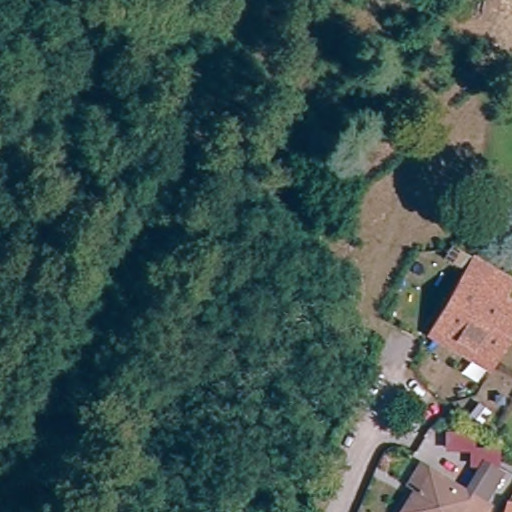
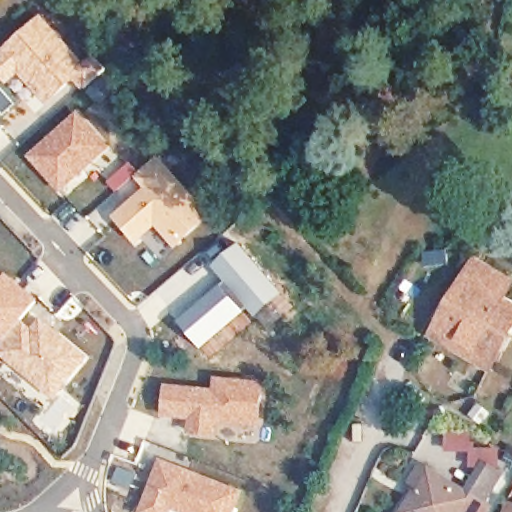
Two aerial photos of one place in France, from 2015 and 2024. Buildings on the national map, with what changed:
new [(0,0),(2,0),(0,4),(0,0)]
new [(83,56),(87,52),(117,87),(96,105),(73,83),(45,108),(17,75),(5,85),(0,79),(0,48),(41,13),(83,56)]
new [(77,109),(111,147),(58,194),(24,156),(77,109)]
new [(209,216),(177,244),(163,229),(165,226),(159,220),(137,239),(117,217),(169,172),(209,216)]
new [(238,242),(283,294),(254,319),(250,314),(220,279),(209,267),(238,242)]
unchanged [(429,334),(434,324),(473,255),(512,276),(512,281),(505,295),(512,299),(512,326),(494,358),(489,366),(429,334)]
new [(7,272),(39,299),(22,320),(33,328),(42,318),(90,358),(55,400),(0,354),(0,348),(5,341),(0,337),(0,275),(2,276),(7,272)]
new [(193,286),(201,294),(220,279),(250,314),(202,351),(166,309),(193,286)]
new [(216,392),(218,380),(263,385),(259,424),(166,415),(168,388),(216,392)]
unchanged [(466,488),(479,469),(473,469),(473,454),(448,452),(448,432),(476,432),(476,446),(498,445),(499,465),(507,470),(488,502),(466,488)]
new [(157,456),(243,490),(234,512),(134,512),(157,456)]
unchanged [(415,487),(411,485),(421,466),(465,490),(489,504),(485,512),(403,512),(415,487)]
unchanged [(506,501),(512,502),(512,512),(504,512),(506,501)]

